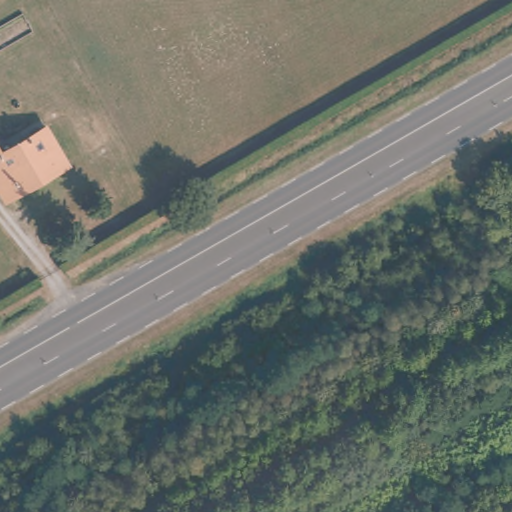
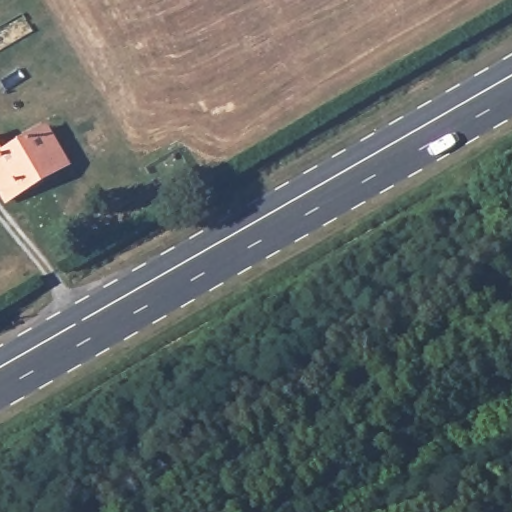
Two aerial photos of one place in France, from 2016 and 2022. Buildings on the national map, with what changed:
unchanged [(68,159),(8,199),(0,186),(0,147),(3,150),(45,123),(68,159)]

